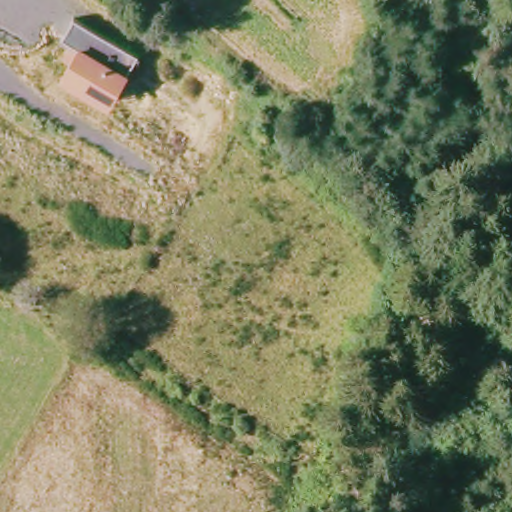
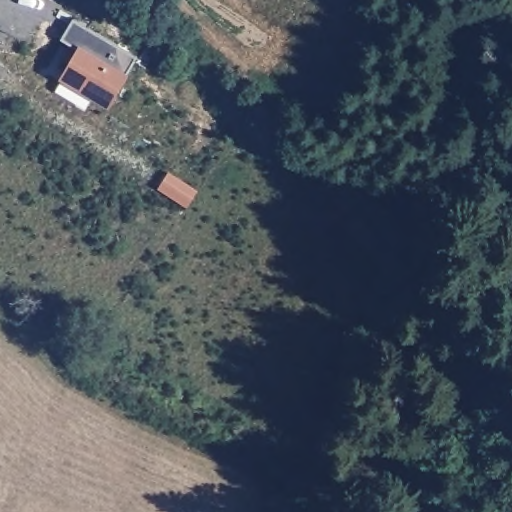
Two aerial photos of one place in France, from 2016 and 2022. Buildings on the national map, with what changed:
unchanged [(71,20),(134,57),(126,73),(107,106),(59,77),(77,48),(60,38),(71,20)]

